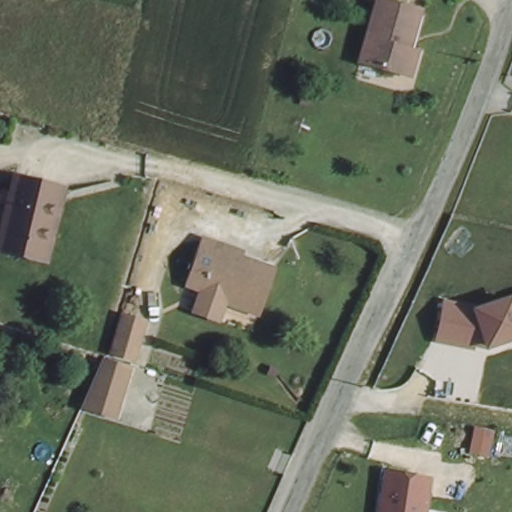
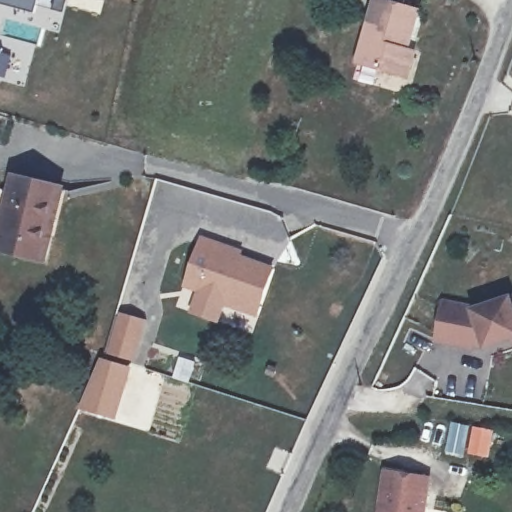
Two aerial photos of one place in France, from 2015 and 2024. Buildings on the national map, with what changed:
new [(37,5),(34,12),(0,4),(0,0),(67,0),(63,13),(37,5)]
unchanged [(373,2),(417,15),(407,52),(414,55),(407,80),(358,65),(373,2)]
new [(0,59),(0,49),(3,50),(0,59)]
unchanged [(0,247),(14,181),(66,191),(58,238),(48,235),(43,262),(0,252),(0,247)]
unchanged [(196,235),(226,246),(238,250),(235,258),(269,270),(254,315),(218,300),(219,295),(181,280),(196,235)]
unchanged [(480,352),(435,343),(445,300),(472,305),(512,294),(512,343),(480,352)]
unchanged [(110,347),(120,310),(140,316),(129,353),(110,347)]
unchanged [(86,384),(99,356),(128,365),(112,413),(78,402),(86,384)]
unchanged [(428,512),(377,512),(383,469),(433,476),(428,512)]

